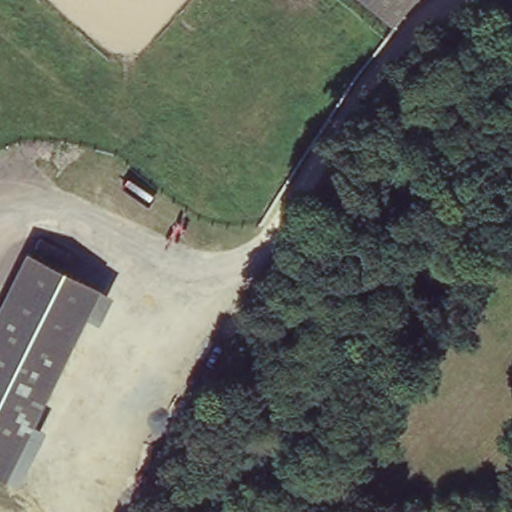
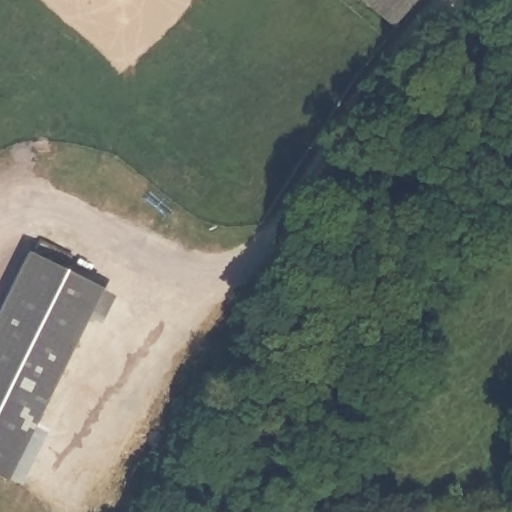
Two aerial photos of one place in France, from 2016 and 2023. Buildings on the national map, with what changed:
unchanged [(405,0),(398,8),(389,20),(365,0),(405,0)]
unchanged [(98,294),(0,476),(0,309),(28,257),(98,294)]

